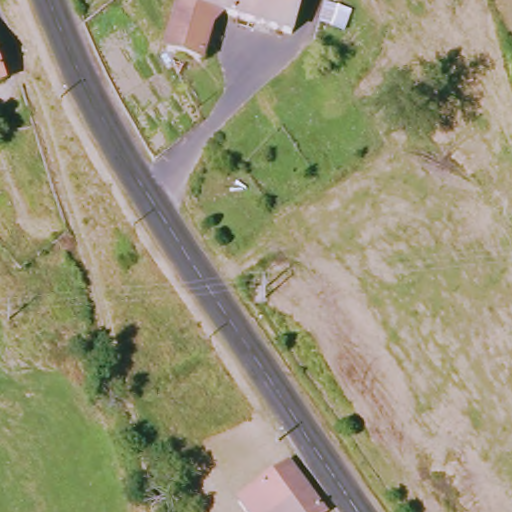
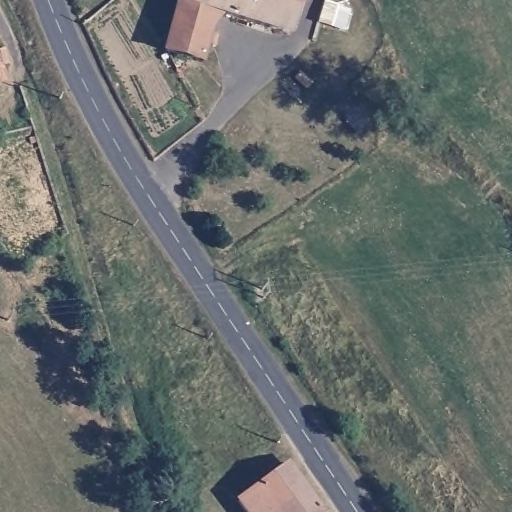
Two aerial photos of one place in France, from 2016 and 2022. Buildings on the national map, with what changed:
unchanged [(155,75),(176,0),(298,0),(289,33),(208,13),(199,48),(205,49),(203,64),(195,61),(188,82),(180,81),(176,98),(155,75)]
unchanged [(0,47),(7,60),(0,61),(0,47)]
unchanged [(280,465),(318,512),(232,512),(227,507),(280,465)]

